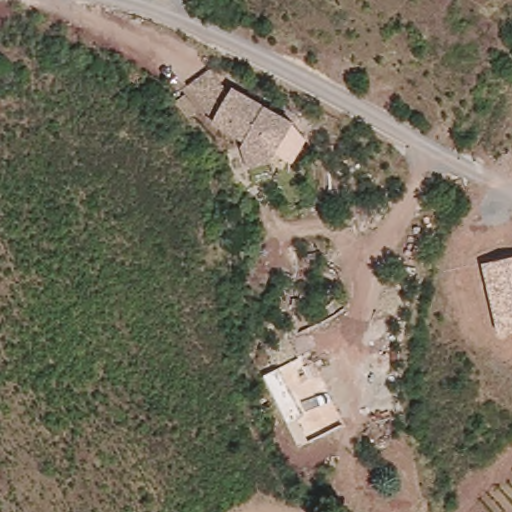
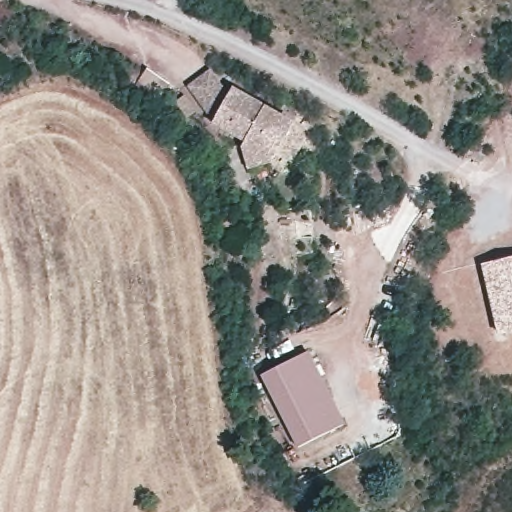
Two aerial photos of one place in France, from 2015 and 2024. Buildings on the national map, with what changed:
new [(219,122),(189,85),(210,70),(233,93),(219,122)]
unchanged [(279,160),(253,165),(245,137),(218,124),(235,88),(299,121),(279,160)]
new [(296,125),(306,139),(292,165),(288,162),(284,168),(274,160),(279,160),(296,125)]
unchanged [(481,265),(512,258),(512,330),(499,333),(481,265)]
new [(262,375),(308,352),(345,424),(299,447),(262,375)]

